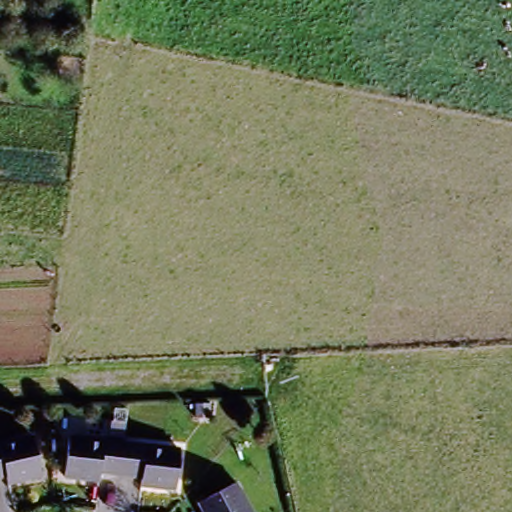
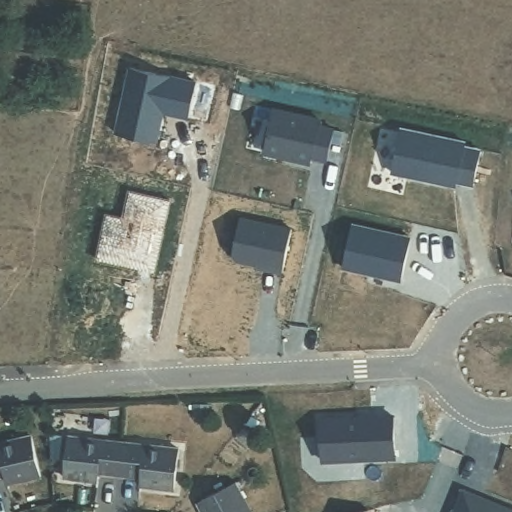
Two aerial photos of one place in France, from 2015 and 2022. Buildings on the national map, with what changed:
new [(128,69),(195,84),(187,120),(170,116),(171,111),(162,109),(154,145),(113,136),(128,69)]
new [(272,112),(320,123),(318,129),(334,132),(327,163),(311,160),(310,166),(262,155),(272,112)]
new [(401,131),(466,146),(465,150),(482,154),(473,189),(457,185),(457,190),(392,176),(401,131)]
new [(120,217),(130,192),(168,200),(157,271),(97,261),(105,216),(120,217)]
new [(238,222),(289,233),(280,277),(263,273),(264,270),(235,264),(231,259),(238,222)]
new [(352,229),(411,242),(401,285),(342,272),(352,229)]
new [(392,422),(393,464),(321,467),(318,425),(392,422)]
unchanged [(26,431),(36,471),(4,479),(2,470),(0,470),(0,437),(26,431)]
unchanged [(117,480),(96,478),(95,484),(59,479),(63,439),(121,445),(117,480)]
unchanged [(177,452),(174,493),(134,489),(134,481),(117,480),(121,445),(177,452)]
unchanged [(237,486),(251,512),(204,512),(200,504),(237,486)]
new [(497,512),(456,512),(462,497),(497,512)]

